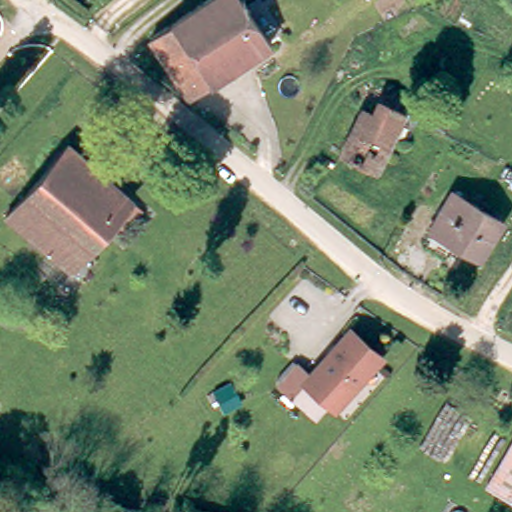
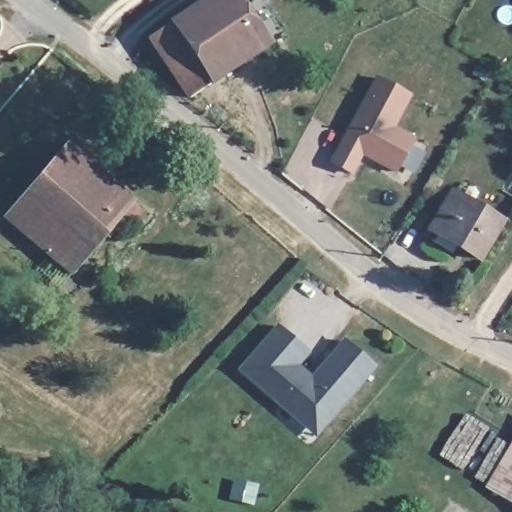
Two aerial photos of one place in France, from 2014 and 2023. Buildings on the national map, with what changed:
unchanged [(269,45),(189,95),(149,36),(176,16),(202,0),(240,0),(269,45)]
unchanged [(400,104),(412,111),(392,146),(378,172),(344,152),(375,90),(400,104)]
unchanged [(134,200),(72,273),(7,219),(67,145),(134,200)]
unchanged [(502,222),(478,260),(431,228),(455,191),(502,222)]
new [(282,388),(306,408),(318,393),(340,410),(317,436),(237,370),(277,325),(310,353),(300,364),(282,388)]
unchanged [(312,375),(347,331),(380,358),(340,410),(318,393),(306,408),(282,388),(300,364),(312,375)]
unchanged [(489,488),(512,447),(512,500),(489,488)]

